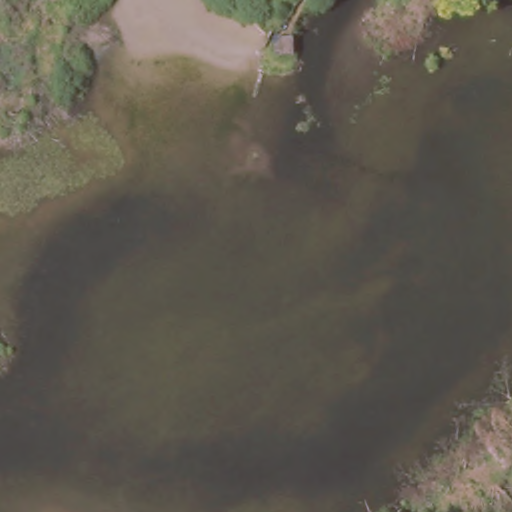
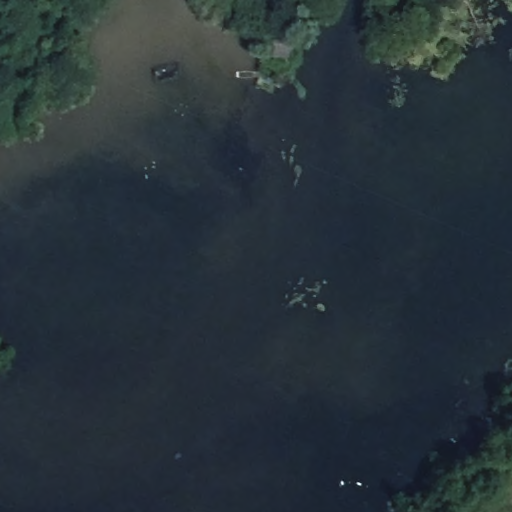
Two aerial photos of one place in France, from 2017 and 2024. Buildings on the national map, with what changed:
unchanged [(287,45),(285,63),(263,60),(265,42),(287,45)]

